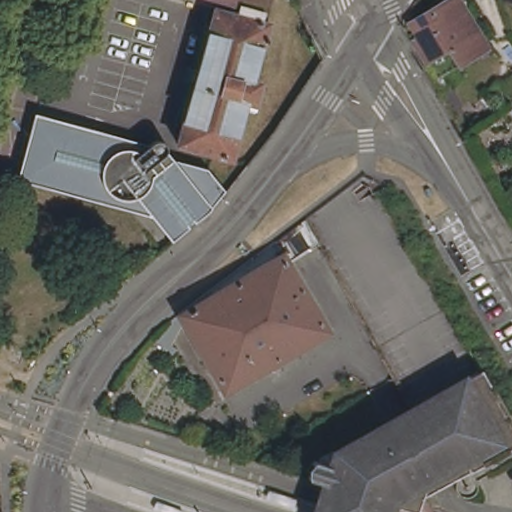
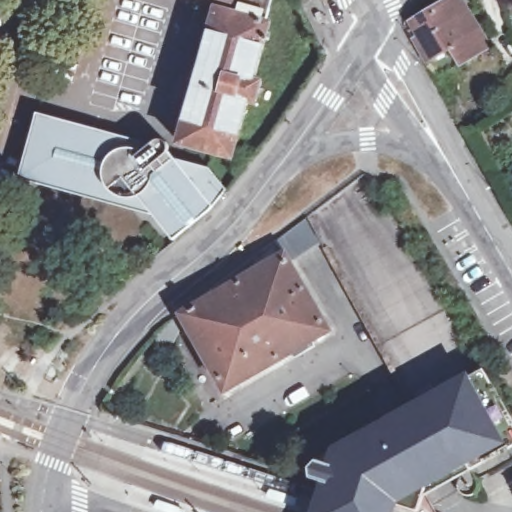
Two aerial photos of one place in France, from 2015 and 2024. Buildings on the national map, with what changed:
unchanged [(272,20),(257,77),(264,79),(259,101),(251,99),(235,155),(182,140),(220,5),(232,9),(235,0),(275,0),(270,19),(272,20)]
unchanged [(407,5),(416,0),(464,0),(482,31),(432,61),(411,23),(415,21),(407,5)]
unchanged [(507,90),(512,86),(512,96),(507,90)]
unchanged [(139,145),(146,147),(157,137),(160,136),(162,136),(164,136),(167,137),(168,138),(170,140),(171,142),(171,144),(171,146),(171,148),(170,150),(162,156),(167,162),(177,155),(202,162),(212,165),(229,187),(212,207),(176,237),(140,193),(140,194),(133,195),(125,194),(117,191),(112,186),(107,189),(79,182),(79,183),(31,170),(23,168),(34,131),(37,117),(40,109),(125,133),(141,137),(139,145)]
unchanged [(329,479),(314,474),(314,465),(323,458),(335,463),(344,443),(408,407),(321,244),(294,261),(335,329),(231,392),(186,314),(289,254),(282,242),(371,181),(377,192),(384,188),(479,369),(475,371),(508,433),(512,441),(512,447),(472,468),(476,470),(481,475),(484,480),(484,486),(481,491),(477,495),(471,497),(464,495),(459,487),(457,476),(424,493),(427,494),(421,510),(400,502),(396,512),(318,512),(329,479)]

